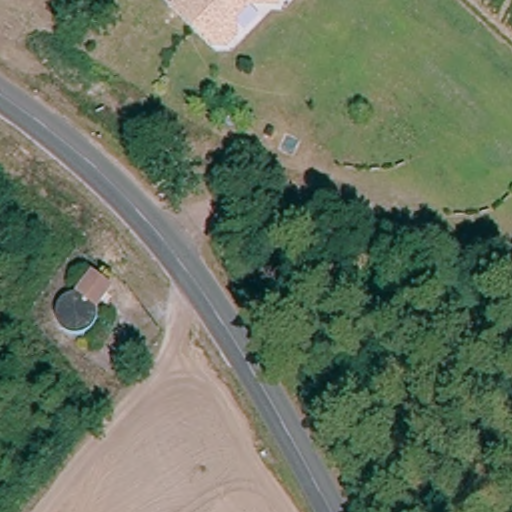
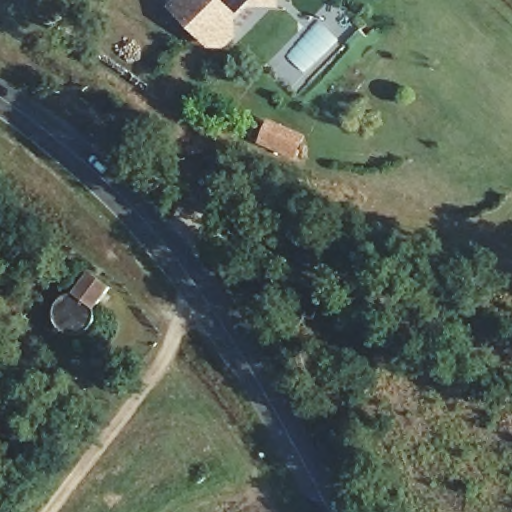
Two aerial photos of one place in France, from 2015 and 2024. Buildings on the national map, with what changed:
unchanged [(273,3),(245,3),(228,20),(231,23),(230,36),(220,45),(208,45),(171,6),(178,0),(273,0),(273,3)]
unchanged [(160,167),(164,163),(171,170),(167,174),(160,167)]
unchanged [(64,290),(75,298),(90,278),(109,290),(93,312),(107,321),(89,346),(46,316),(64,290)]

